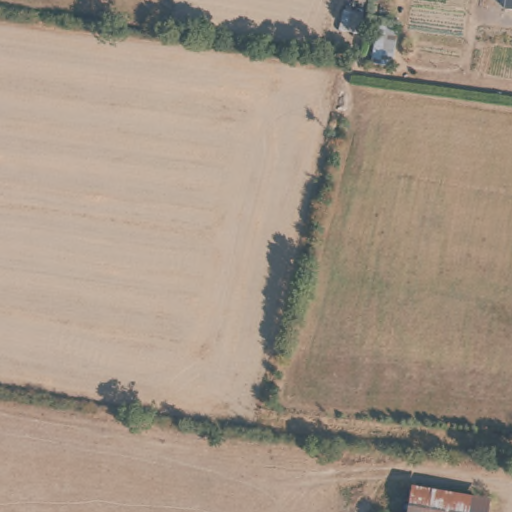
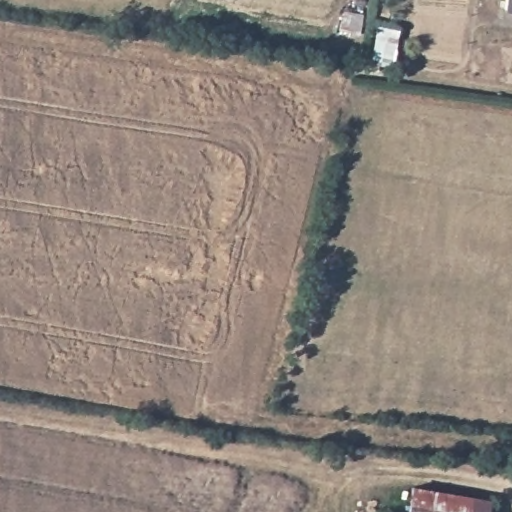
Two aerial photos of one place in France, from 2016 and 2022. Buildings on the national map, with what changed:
unchanged [(505,0),(512,0),(512,10),(505,9),(505,0)]
unchanged [(391,69),(368,64),(373,25),(398,28),(391,69)]
unchanged [(491,503),(489,512),(411,512),(415,489),(491,503)]

